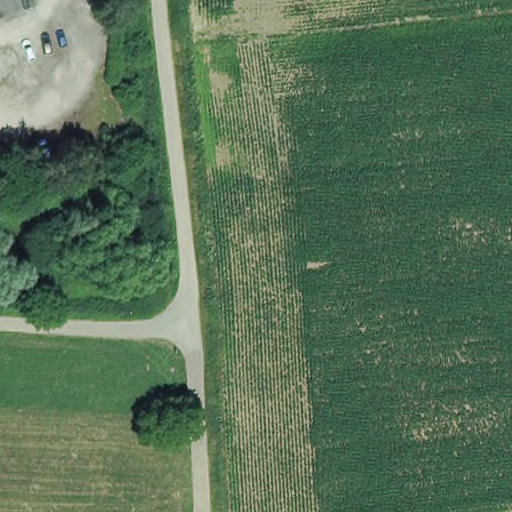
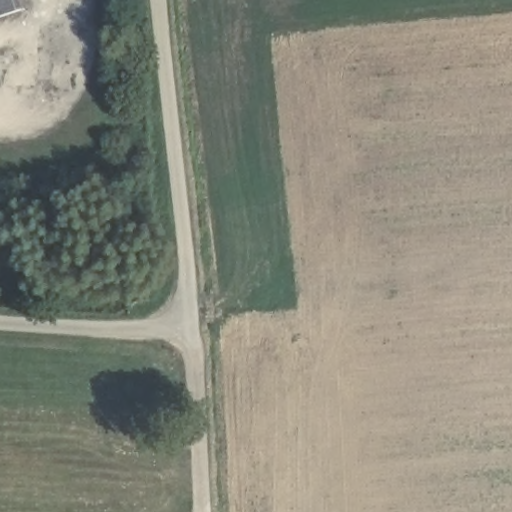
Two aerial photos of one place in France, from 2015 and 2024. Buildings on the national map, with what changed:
unchanged [(18,0),(0,6),(0,0),(18,0)]

